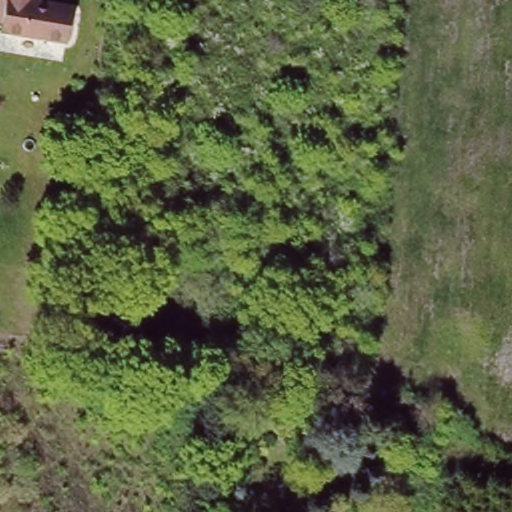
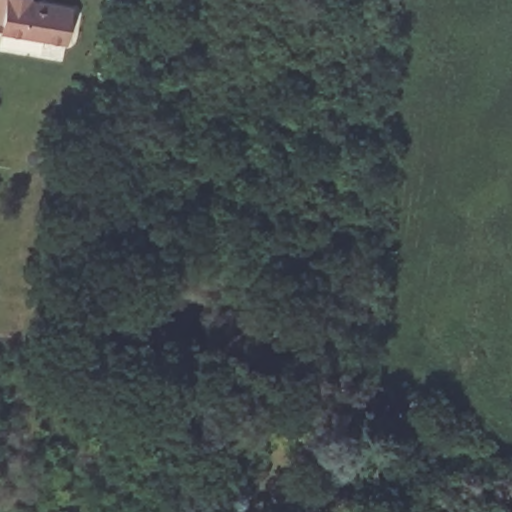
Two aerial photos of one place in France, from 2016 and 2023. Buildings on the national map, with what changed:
unchanged [(3,17),(0,16),(0,0),(61,0),(70,2),(64,35),(2,25),(3,17)]

